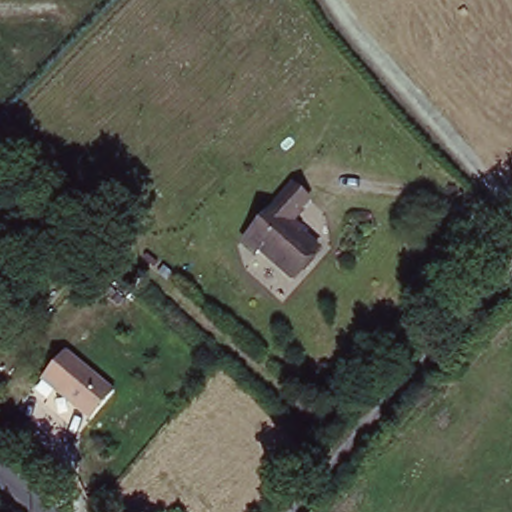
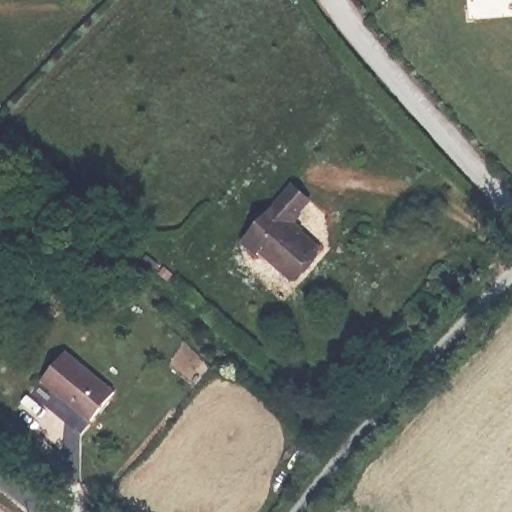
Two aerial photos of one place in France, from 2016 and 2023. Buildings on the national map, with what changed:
unchanged [(305,196),(286,220),(313,243),(284,272),(257,251),(253,255),(237,237),(287,179),(305,196)]
unchanged [(111,385),(87,415),(39,376),(59,348),(111,385)]

